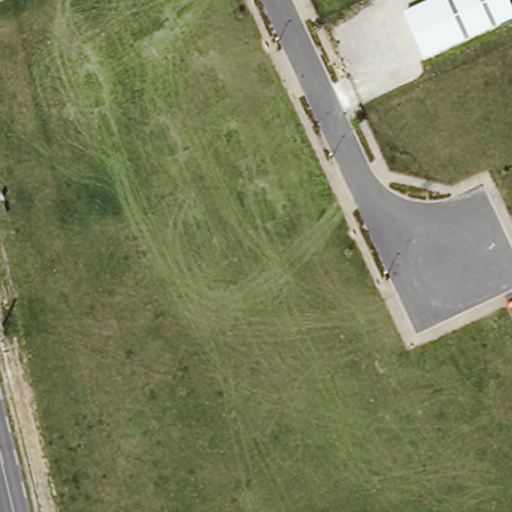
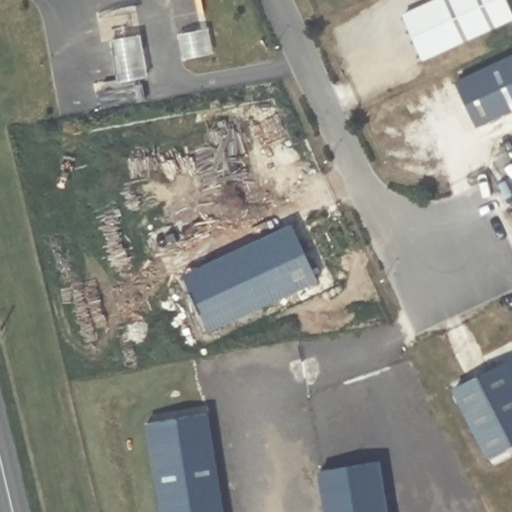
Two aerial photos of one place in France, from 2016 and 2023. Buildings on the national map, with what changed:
unchanged [(512,20),(424,60),(404,13),(433,0),(508,0),(512,7),(512,20)]
new [(141,33),(148,76),(118,81),(111,39),(141,33)]
new [(456,80),(512,53),(512,109),(478,126),(456,80)]
new [(208,331),(181,275),(291,221),(317,279),(208,331)]
new [(453,388),(505,361),(512,374),(512,445),(489,458),(453,388)]
new [(144,421),(208,410),(223,512),(160,512),(144,421)]
new [(319,470),(381,461),(390,512),(326,512),(319,470)]

